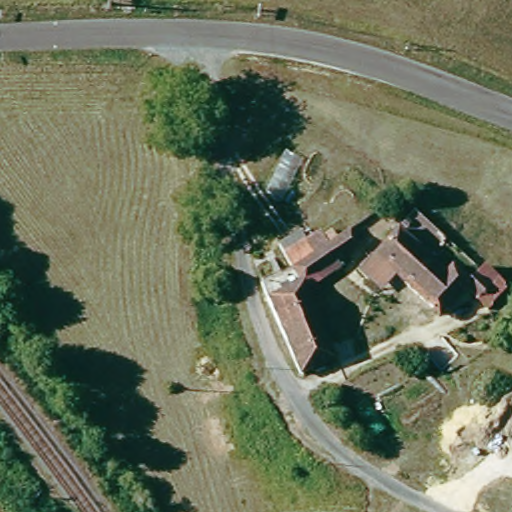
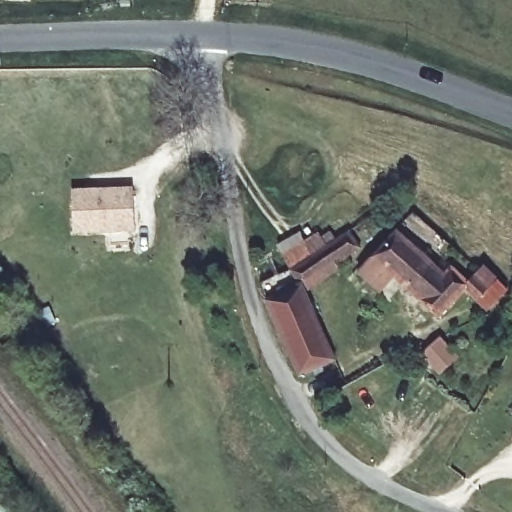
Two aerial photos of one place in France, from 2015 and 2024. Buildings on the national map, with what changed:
new [(130,190),(131,232),(70,235),(69,192),(130,190)]
unchanged [(378,262),(402,236),(449,280),(456,273),(470,287),(486,270),(510,293),(488,317),(466,296),(442,321),(399,281),(386,295),(366,276),(378,262)]
unchanged [(308,298),(336,364),(298,378),(259,287),(290,273),(281,253),(304,242),(308,247),(318,240),(326,253),(349,237),(359,252),(326,276),(317,283),(321,292),(308,298)]
new [(439,340),(456,360),(439,375),(422,355),(439,340)]

